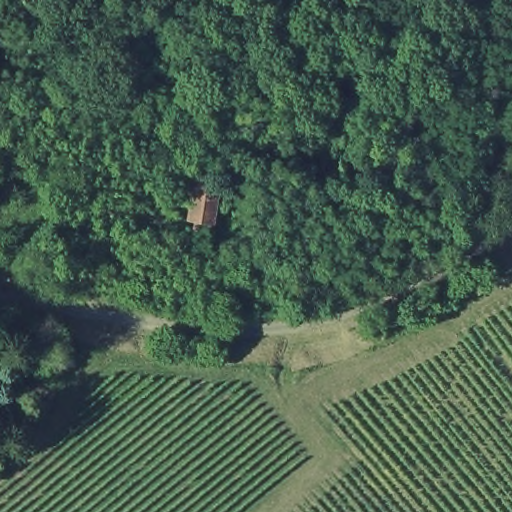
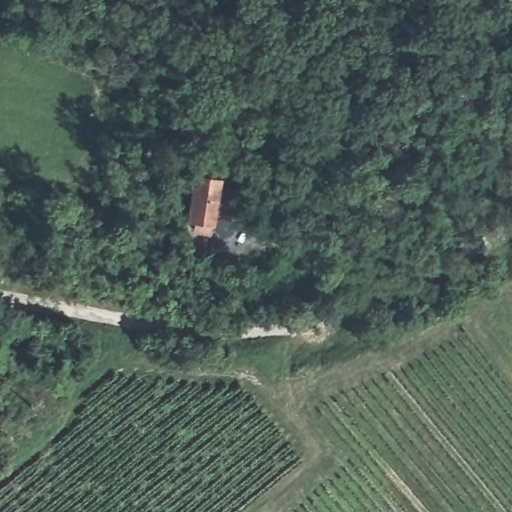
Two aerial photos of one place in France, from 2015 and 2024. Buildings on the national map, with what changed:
unchanged [(232,176),(223,232),(191,227),(198,172),(232,176)]

